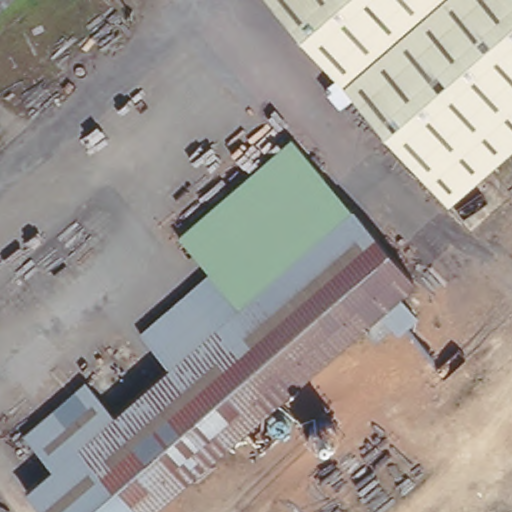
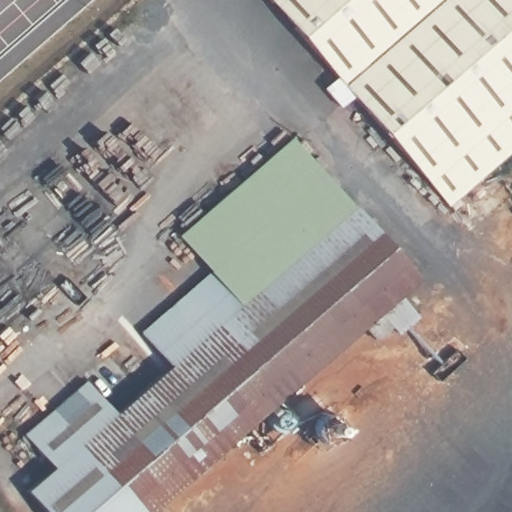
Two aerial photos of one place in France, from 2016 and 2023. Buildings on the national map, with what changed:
unchanged [(270,0),(512,0),(512,149),(448,202),(270,0)]
unchanged [(60,463),(34,433),(93,383),(118,410),(171,365),(140,330),(206,272),(177,235),(292,140),(419,276),(397,295),(417,317),(396,336),(390,330),(372,345),(359,328),(147,512),(52,512),(29,486),(60,463)]
unchanged [(323,408),(345,435),(322,456),(299,430),(323,408)]

